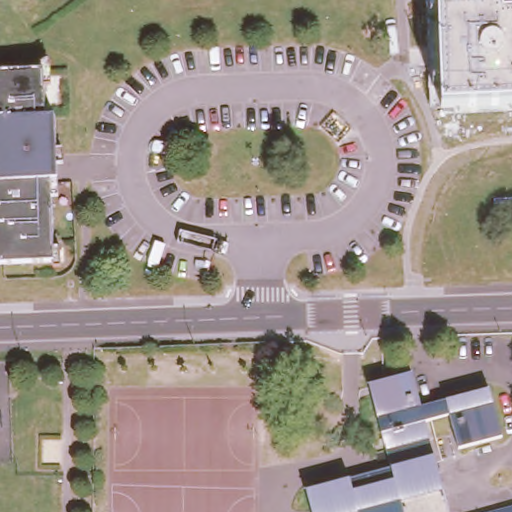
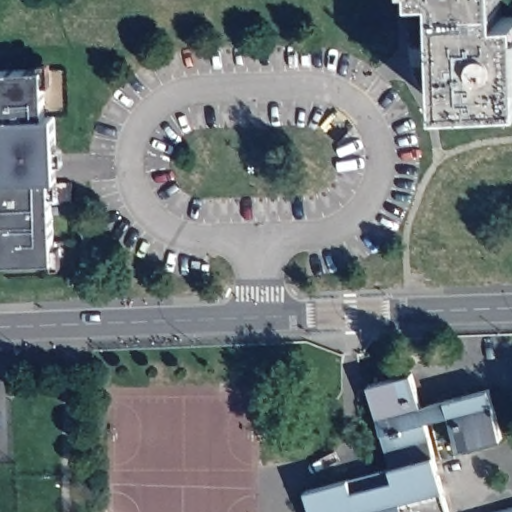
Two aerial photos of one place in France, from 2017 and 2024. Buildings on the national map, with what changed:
unchanged [(443,106),(438,0),(499,0),(499,14),(512,14),(512,103),(443,106)]
unchanged [(0,73),(41,72),(42,118),(54,118),(55,180),(48,180),(52,261),(0,262),(0,73)]
unchanged [(309,490),(394,467),(372,383),(417,372),(426,406),(493,387),(507,436),(464,448),(454,415),(432,422),(456,512),(315,512),(309,490)]
unchanged [(512,507),(512,512),(493,512),(512,507)]

